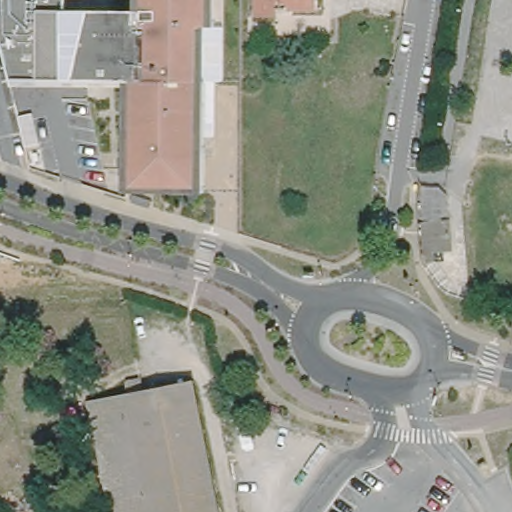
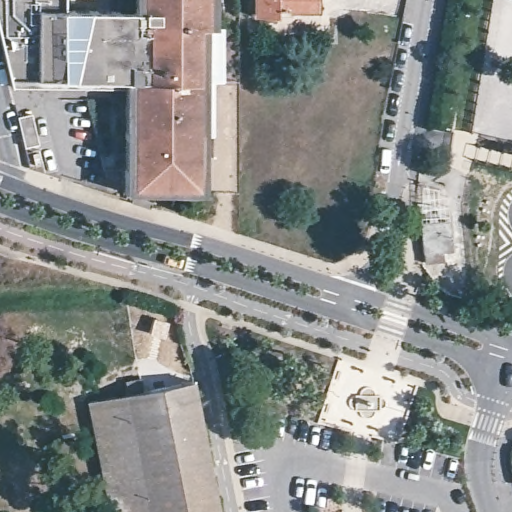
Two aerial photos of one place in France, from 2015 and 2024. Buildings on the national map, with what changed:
unchanged [(207,194),(130,192),(131,81),(11,84),(0,35),(0,0),(70,0),(70,9),(135,9),(135,0),(219,0),(219,27),(208,27),(207,194)]
unchanged [(314,12),(275,12),(275,21),(253,21),(253,0),(314,0),(314,12)]
unchanged [(443,254),(443,261),(423,262),(420,187),(437,187),(447,195),(452,253),(443,254)]
unchanged [(91,396),(196,375),(222,512),(112,512),(94,411),(91,396)]

